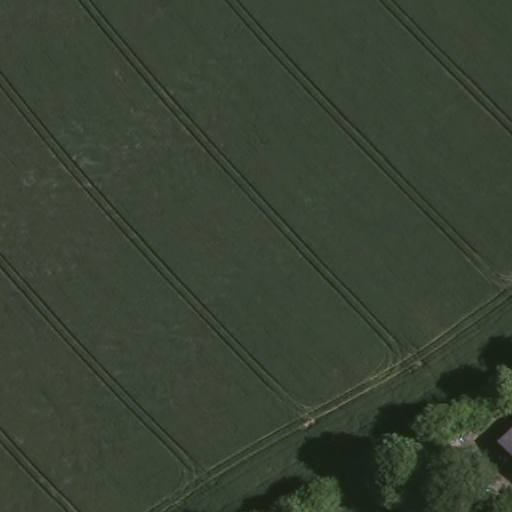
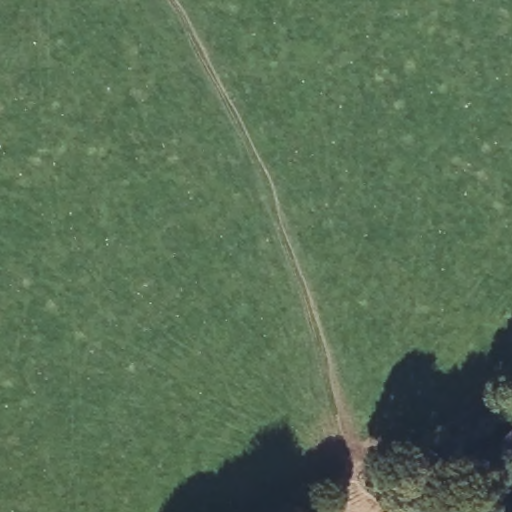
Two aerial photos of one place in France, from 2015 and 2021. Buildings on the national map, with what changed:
unchanged [(512,433),(512,452),(502,441),(512,433)]

